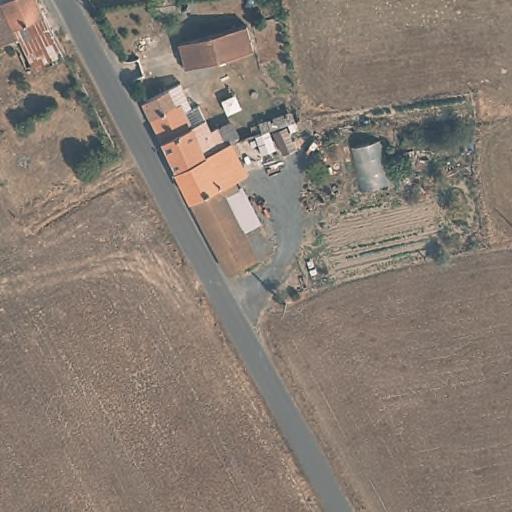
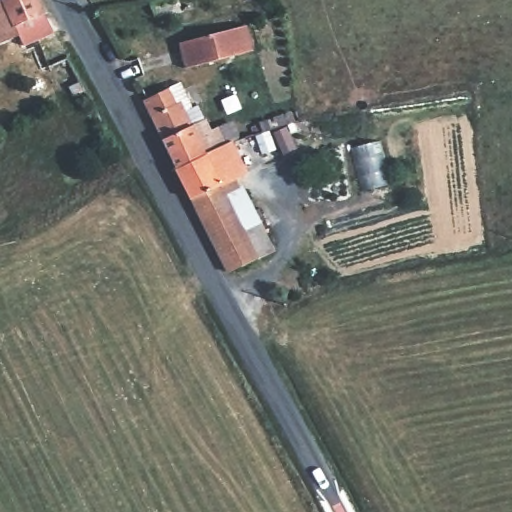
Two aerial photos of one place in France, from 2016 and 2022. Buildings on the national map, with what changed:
unchanged [(21,46),(16,37),(0,45),(0,0),(1,0),(35,0),(46,25),(50,32),(62,56),(33,70),(21,46)]
unchanged [(147,0),(174,0),(177,14),(150,17),(147,0)]
unchanged [(243,28),(250,53),(184,71),(177,45),(243,28)]
unchanged [(147,106),(173,95),(182,90),(194,114),(200,111),(213,136),(230,130),(239,148),(234,150),(180,176),(155,122),(147,106)]
unchanged [(260,226),(275,257),(232,280),(180,176),(234,150),(245,176),(234,182),(240,196),(244,194),(247,202),(260,226),(241,233),(260,226)]

